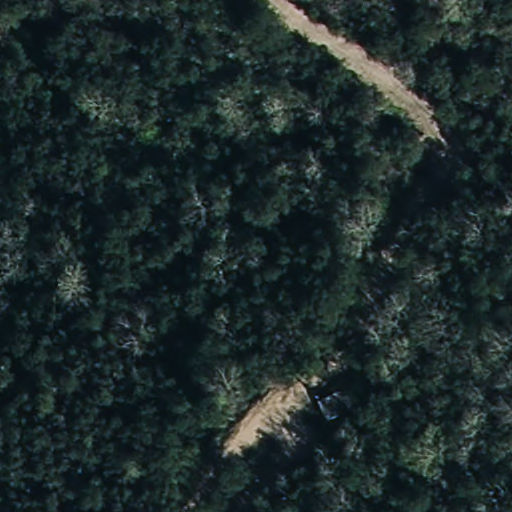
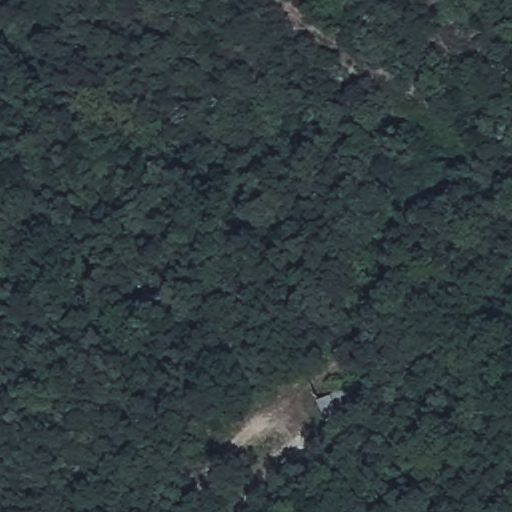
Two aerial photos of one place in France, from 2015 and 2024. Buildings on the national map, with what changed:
unchanged [(353,387),(358,407),(326,416),(324,399),(353,387)]

